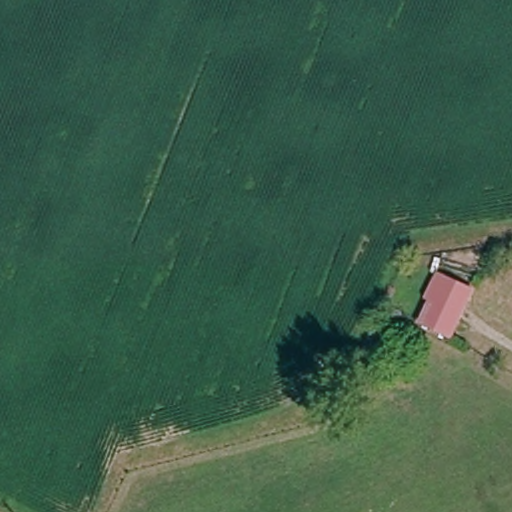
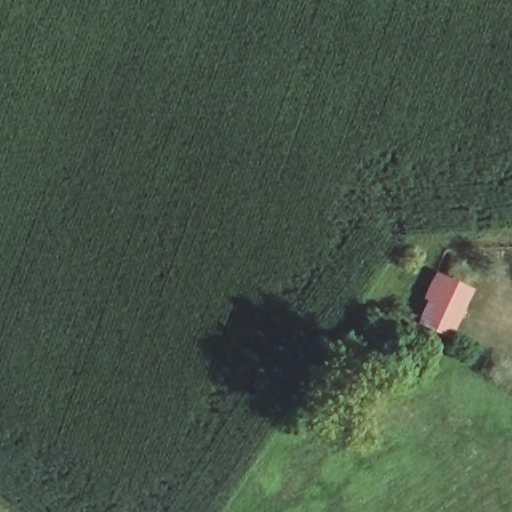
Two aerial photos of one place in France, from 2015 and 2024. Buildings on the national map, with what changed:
unchanged [(433,273),(470,295),(444,341),(420,326),(429,307),(419,301),(433,273)]

